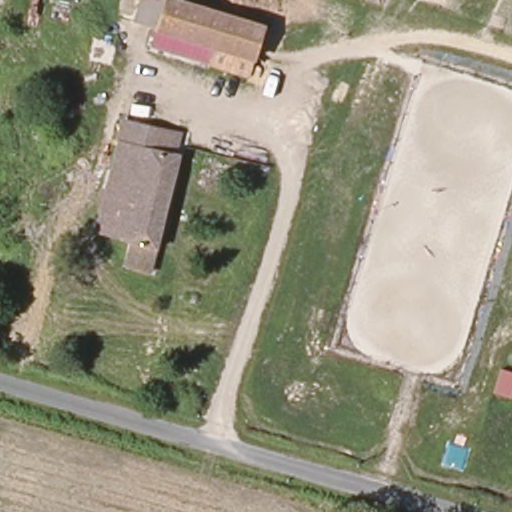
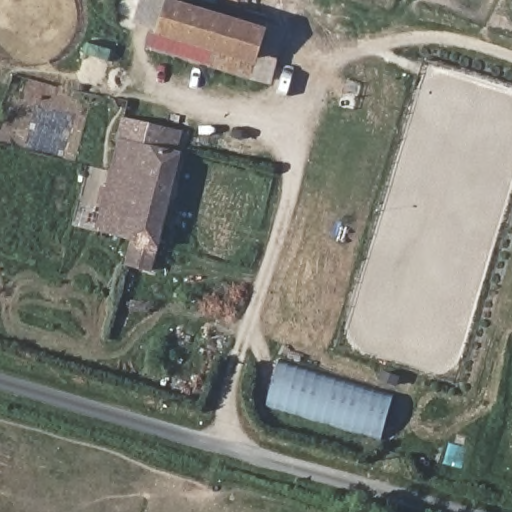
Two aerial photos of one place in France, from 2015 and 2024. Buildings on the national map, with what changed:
unchanged [(257,79),(216,66),(222,49),(158,29),(144,25),(151,0),(174,0),(272,32),(257,79)]
new [(216,4),(203,0),(218,0),(216,4)]
demolished [(0,147),(0,93),(18,96),(5,149),(0,147)]
unchanged [(174,154),(182,155),(156,272),(132,266),(136,247),(102,237),(130,123),(178,134),(174,154)]
new [(393,395),(380,440),(266,408),(280,363),(393,395)]
demolished [(295,427),(309,432),(305,447),(290,443),(295,427)]

